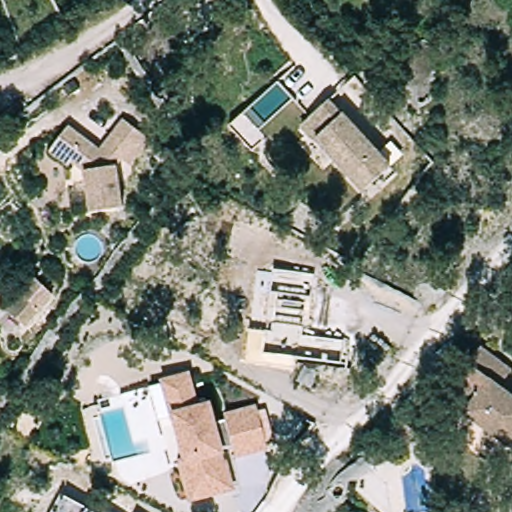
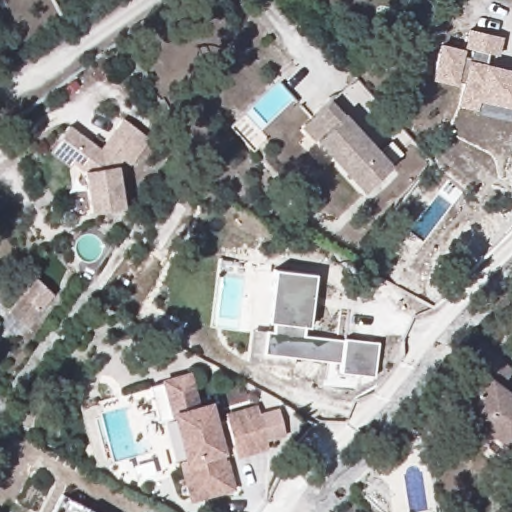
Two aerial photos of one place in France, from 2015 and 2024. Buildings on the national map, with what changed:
new [(464,51),(462,58),(470,59),(471,51),(464,49),(468,30),(502,37),(499,56),(490,55),(489,65),(512,71),(512,109),(477,102),(475,112),(455,107),(461,82),(457,81),(455,86),(430,81),(438,44),(464,51)]
unchanged [(300,124),(328,98),(388,163),(360,189),(300,124)]
unchanged [(119,157),(114,165),(124,202),(93,211),(82,170),(70,160),(67,147),(56,138),(66,125),(98,149),(121,118),(147,137),(127,164),(119,157)]
new [(272,270),(314,275),(308,328),(304,327),(303,337),(343,341),(377,345),(373,377),(340,374),(341,363),(263,355),(266,332),(272,332),(274,323),(266,323),(272,270)]
unchanged [(39,317),(24,332),(11,321),(26,305),(24,302),(47,278),(64,294),(41,318),(39,317)]
unchanged [(507,371),(495,387),(512,399),(512,450),(506,446),(505,447),(460,415),(463,411),(444,397),(457,379),(462,382),(470,371),(464,366),(476,348),(507,371)]
unchanged [(188,372),(196,406),(212,402),(217,422),(225,420),(223,413),(252,407),(262,450),(233,457),(231,447),(223,448),(224,452),(219,453),(228,491),(187,501),(178,462),(185,460),(175,416),(171,417),(162,378),(188,372)]
unchanged [(54,512),(61,499),(88,507),(95,512),(54,512)]

